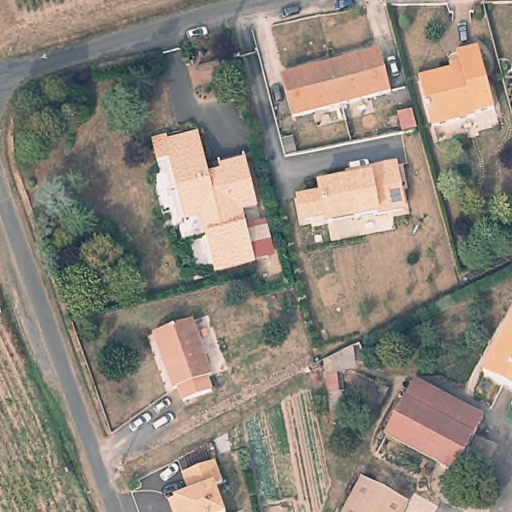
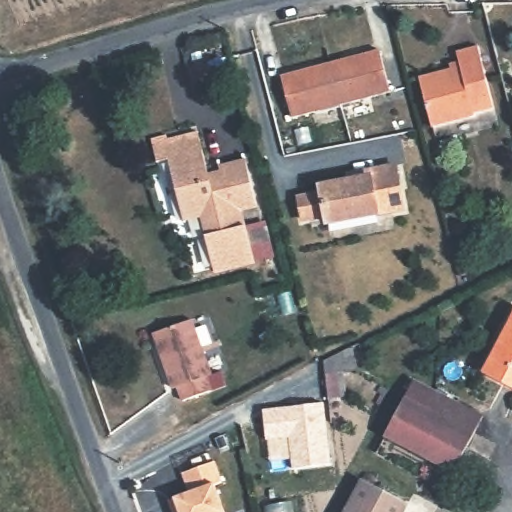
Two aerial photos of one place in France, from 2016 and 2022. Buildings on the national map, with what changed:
unchanged [(481,45),(498,106),(479,111),(480,115),(435,127),(421,77),(453,68),(451,62),(461,59),(458,50),(481,45)]
unchanged [(377,46),(388,88),(289,115),(278,72),(377,46)]
unchanged [(261,265),(220,276),(210,242),(214,236),(209,217),(188,222),(175,172),(163,174),(157,150),(172,146),(174,152),(203,143),(214,185),(226,182),(226,181),(224,173),(250,167),(251,167),(262,210),(247,214),(252,231),(261,265)]
unchanged [(323,212),(301,216),(296,194),(319,189),(318,182),(346,177),(345,171),(365,167),(392,162),(401,206),(354,215),(325,220),(323,212)]
unchanged [(483,368),(512,313),(512,385),(482,371),(483,368)]
unchanged [(194,322),(196,322),(217,376),(211,377),(216,390),(189,401),(184,389),(182,390),(179,391),(178,390),(158,337),(168,333),(194,322)]
unchanged [(415,378),(484,413),(474,432),(405,397),(415,378)]
unchanged [(474,432),(454,470),(386,435),(405,397),(474,432)]
new [(290,469),(288,438),(265,440),(262,408),(324,402),(331,465),(290,469)]
unchanged [(168,505),(189,497),(182,477),(214,465),(221,486),(214,488),(222,512),(170,512),(168,505)]
unchanged [(363,477),(408,502),(403,512),(344,512),(363,477)]

